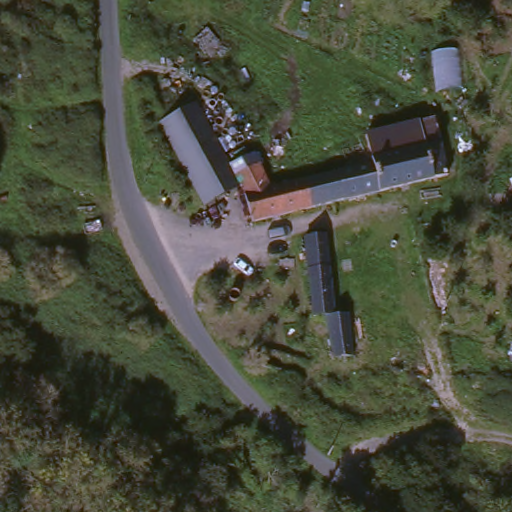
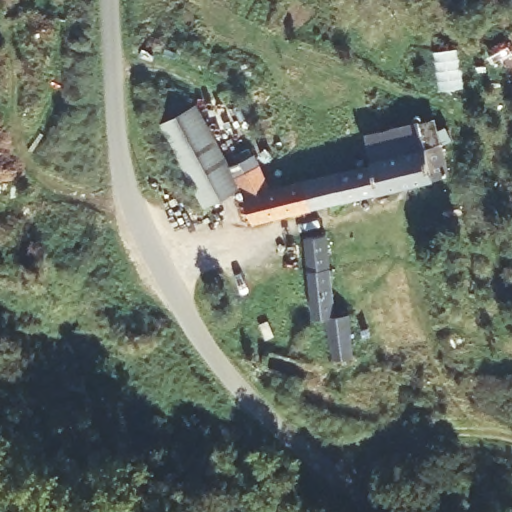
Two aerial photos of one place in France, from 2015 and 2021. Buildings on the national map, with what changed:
unchanged [(193,102),(228,162),(252,150),(275,195),(244,202),(237,187),(202,209),(154,119),(193,102)]
unchanged [(434,154),(422,156),(428,186),(376,197),(369,171),(350,175),(348,160),(368,157),(364,137),(417,124),(434,154)]
unchanged [(324,185),(323,177),(350,175),(369,171),(376,197),(327,212),(324,185)]
unchanged [(327,212),(252,230),(244,202),(275,195),(324,185),(327,212)]
unchanged [(321,239),(322,266),(339,266),(345,360),(329,360),(326,317),(308,316),(301,239),(321,239)]

